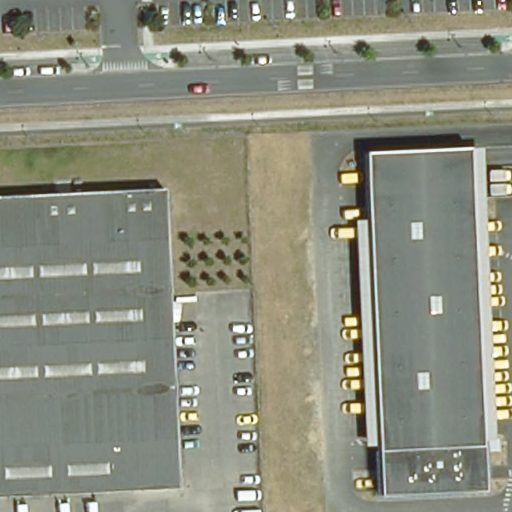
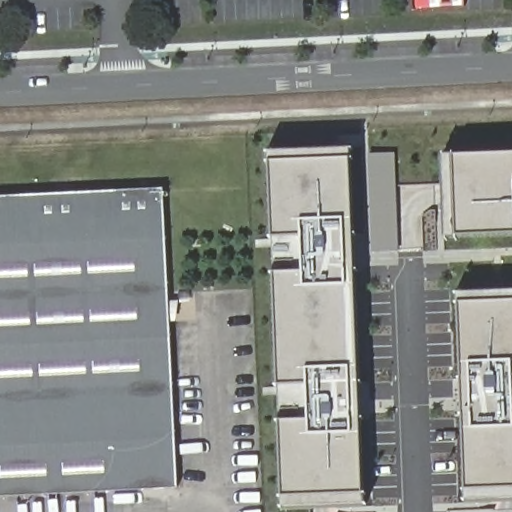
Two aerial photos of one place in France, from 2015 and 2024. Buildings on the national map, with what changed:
new [(355,148),(359,236),(370,234),(370,152),(399,152),(398,262),(356,264),(375,507),(282,510),(270,151),(355,148)]
new [(512,236),(448,237),(446,151),(512,149),(512,236)]
demolished [(468,155),(485,497),(380,502),(363,160),(468,155)]
unchanged [(168,188),(183,488),(0,497),(0,197),(168,188)]
new [(512,498),(466,498),(461,290),(512,289),(512,498)]

